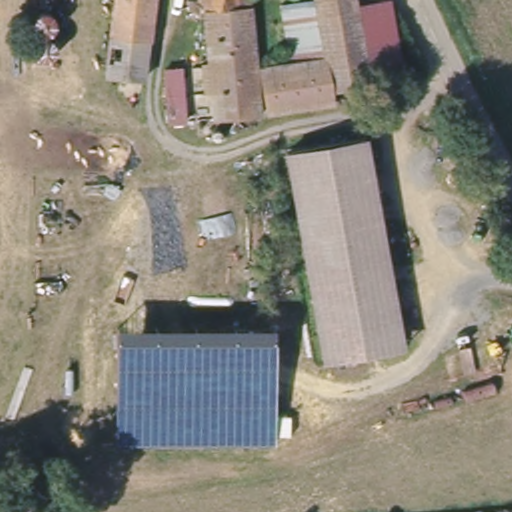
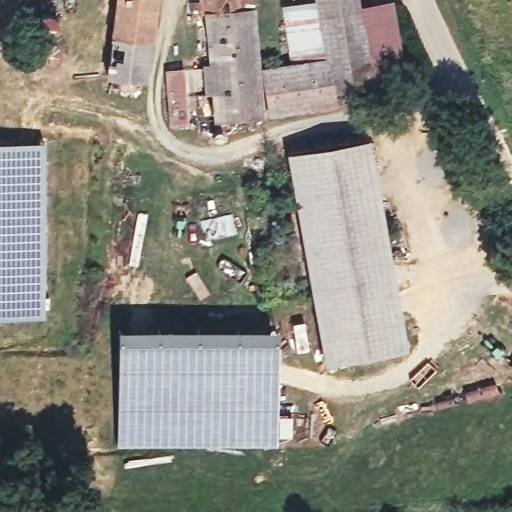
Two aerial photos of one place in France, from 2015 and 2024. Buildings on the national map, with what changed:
unchanged [(151,37),(111,35),(115,0),(156,0),(151,37)]
unchanged [(201,0),(237,0),(245,69),(208,73),(201,0)]
unchanged [(245,69),(237,0),(251,0),(258,68),(245,69)]
new [(324,60),(287,64),(280,6),(317,0),(324,60)]
unchanged [(324,60),(317,0),(357,0),(358,6),(366,83),(363,84),(327,88),(324,60)]
unchanged [(380,3),(411,78),(366,83),(358,6),(380,3)]
unchanged [(146,83),(106,78),(111,35),(151,37),(146,83)]
unchanged [(329,109),(269,113),(265,67),(324,60),(327,88),(327,94),(329,109)]
unchanged [(165,67),(184,66),(187,118),(168,121),(165,67)]
unchanged [(208,73),(245,69),(258,68),(262,113),(211,117),(208,73)]
new [(44,319),(0,319),(0,143),(44,144),(44,319)]
unchanged [(376,144),(404,348),(324,359),(297,154),(376,144)]
unchanged [(278,329),(277,445),(114,444),(116,328),(278,329)]

